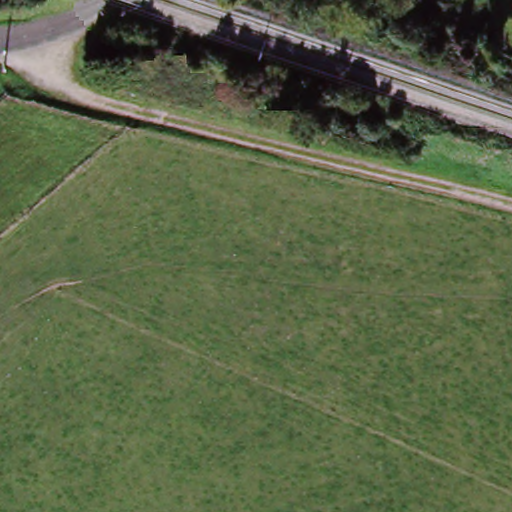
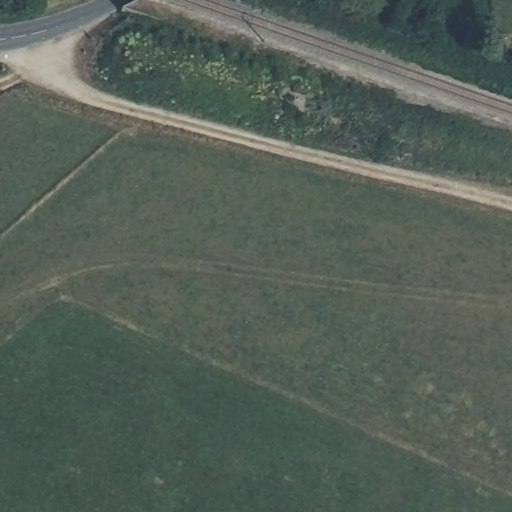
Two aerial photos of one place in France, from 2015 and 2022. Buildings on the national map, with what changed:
[]

